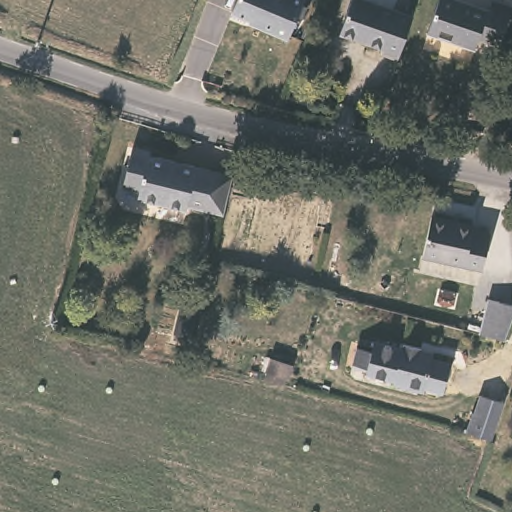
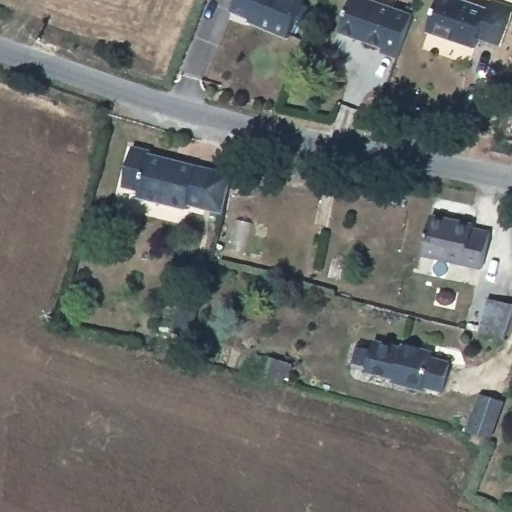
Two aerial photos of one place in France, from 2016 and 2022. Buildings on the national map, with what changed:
unchanged [(300,15),(290,37),(266,27),(265,21),(238,9),(242,0),(306,0),(305,2),(312,5),(307,18),(300,15)]
unchanged [(405,9),(413,12),(395,61),(381,55),(382,50),(337,35),(350,0),(363,0),(404,14),(405,9)]
unchanged [(484,5),(505,13),(492,54),(471,47),(468,55),(422,39),(434,0),(436,0),(481,15),(484,5)]
unchanged [(225,215),(205,209),(187,205),(184,210),(140,197),(142,189),(125,184),(136,144),(154,148),(154,155),(214,170),(234,175),(225,215)]
unchanged [(479,227),(479,232),(494,235),(485,272),(425,257),(435,216),(479,227)]
unchanged [(479,324),(488,291),(512,296),(512,308),(503,331),(479,324)]
unchanged [(200,306),(193,338),(173,334),(181,302),(200,306)]
unchanged [(437,347),(438,359),(452,362),(445,390),(428,385),(424,387),(397,380),(396,375),(371,369),(372,364),(358,360),(364,338),(378,342),(381,332),(437,347)]
unchanged [(494,436),(472,431),(476,411),(479,412),(483,395),(507,401),(494,436)]

